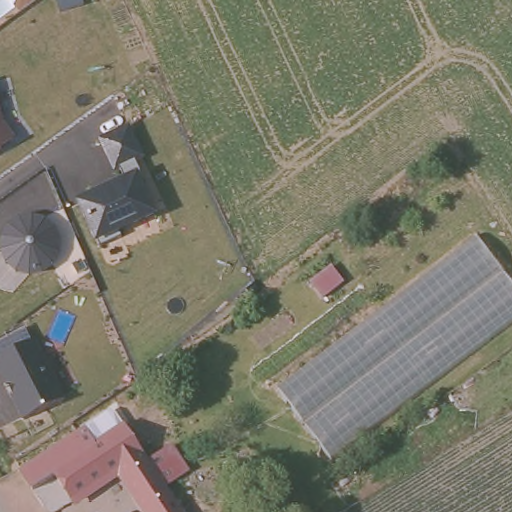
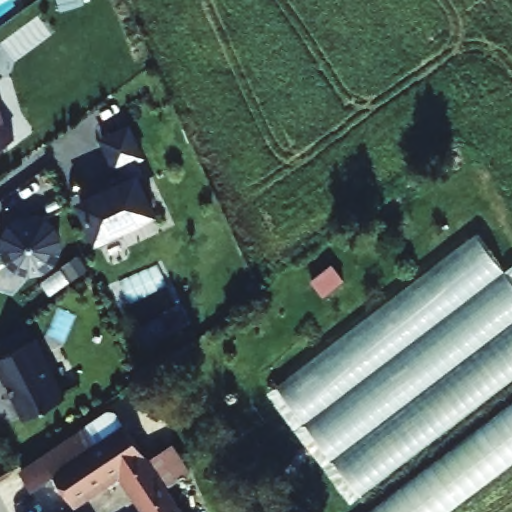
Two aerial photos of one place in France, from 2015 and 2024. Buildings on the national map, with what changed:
unchanged [(14,138),(0,148),(0,107),(5,122),(14,138)]
unchanged [(113,171),(100,140),(129,127),(143,158),(136,161),(138,172),(158,218),(120,234),(121,237),(100,246),(98,242),(94,245),(76,203),(124,180),(120,168),(113,171)]
unchanged [(53,226),(57,232),(61,244),(60,257),(53,267),(42,274),(28,276),(14,272),(5,262),(0,250),(1,235),(8,224),(20,216),(34,215),(45,218),(53,226)]
unchanged [(331,459),(278,387),(477,235),(512,283),(512,322),(331,459)]
new [(512,322),(512,378),(360,494),(331,459),(512,322)]
unchanged [(37,340),(65,400),(20,420),(0,378),(0,341),(25,331),(31,342),(37,340)]
new [(449,512),(366,512),(512,401),(512,465),(449,512)]
unchanged [(113,411),(163,487),(146,461),(172,444),(190,472),(172,482),(185,504),(178,510),(180,512),(147,512),(119,467),(70,498),(53,472),(31,487),(20,470),(77,432),(78,433),(113,411)]

